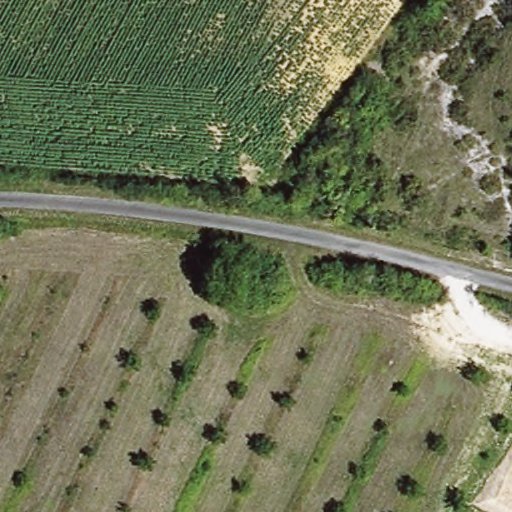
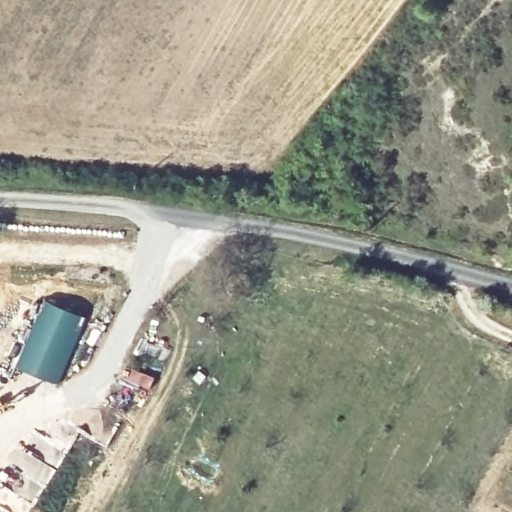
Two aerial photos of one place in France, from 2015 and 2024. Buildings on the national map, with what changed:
new [(45,302),(85,320),(59,382),(19,367),(45,302)]

